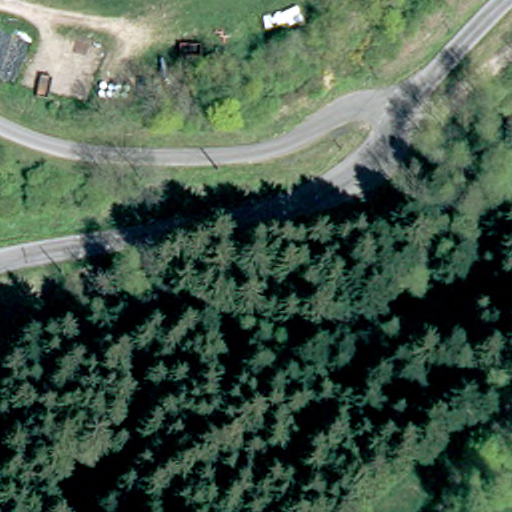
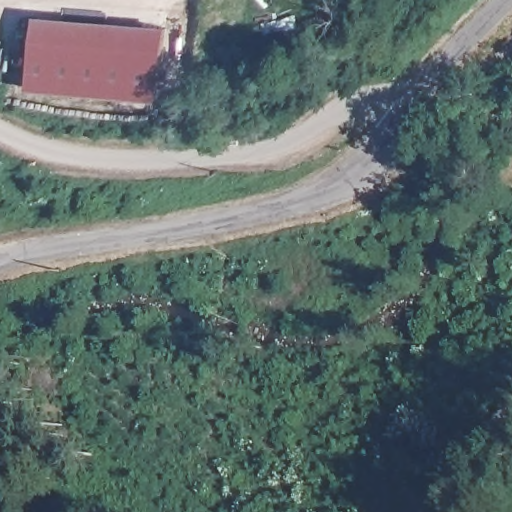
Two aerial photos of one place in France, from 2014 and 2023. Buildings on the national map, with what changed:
new [(167,27),(160,100),(32,88),(37,14),(167,27)]

